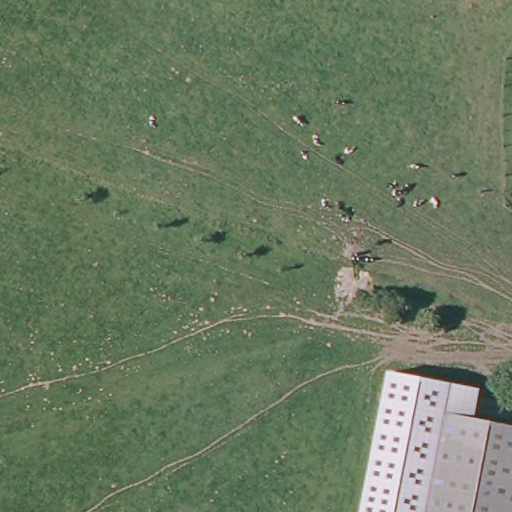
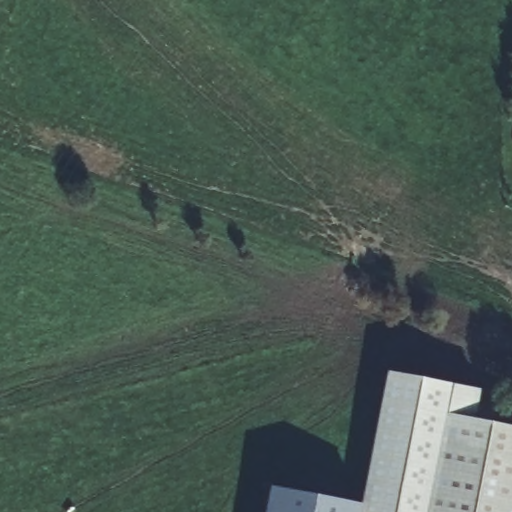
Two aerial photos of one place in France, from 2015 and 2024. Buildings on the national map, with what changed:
unchanged [(482,389),(476,418),(512,426),(512,512),(361,512),(389,371),(482,389)]
new [(363,504),(361,512),(267,512),(272,486),(363,504)]

